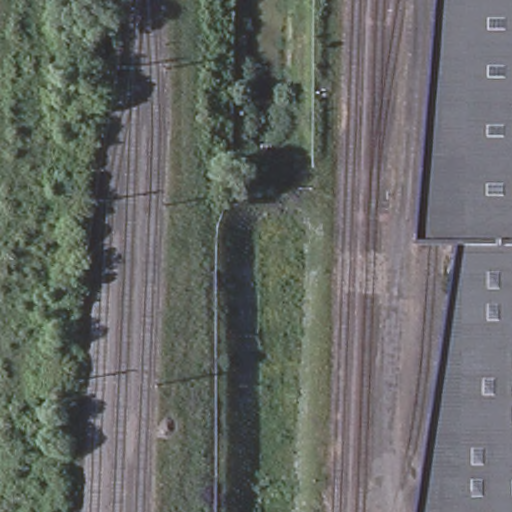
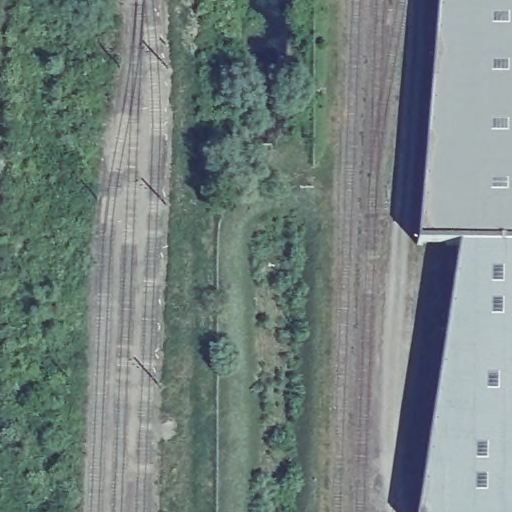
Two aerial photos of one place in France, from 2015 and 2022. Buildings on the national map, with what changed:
unchanged [(512,0),(512,246),(460,246),(419,246),(436,13),(440,0),(512,0)]
unchanged [(440,0),(436,13),(437,0),(440,0)]
unchanged [(460,246),(512,246),(512,512),(421,512),(460,246)]

